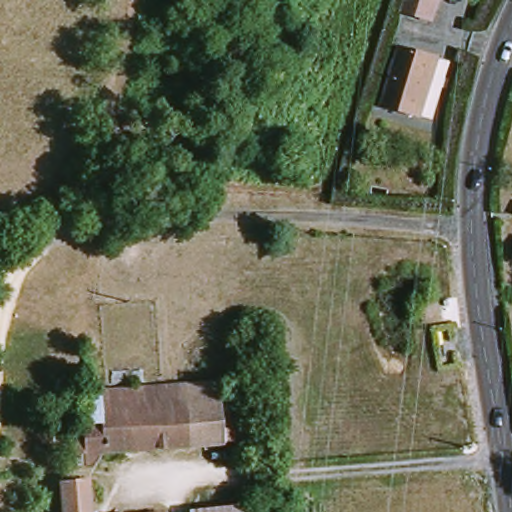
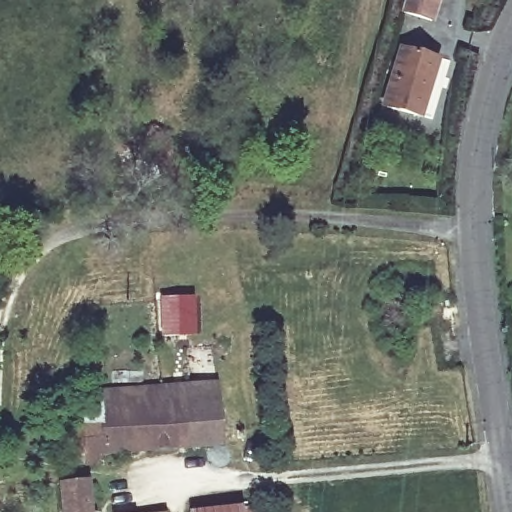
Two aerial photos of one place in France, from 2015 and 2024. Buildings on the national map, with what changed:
unchanged [(403,12),(407,0),(437,0),(431,20),(403,12)]
unchanged [(437,60),(419,117),(383,106),(401,49),(437,60)]
new [(197,294),(198,334),(161,335),(159,295),(197,294)]
unchanged [(220,417),(232,416),(234,443),(187,446),(181,388),(217,385),(220,417)]
unchanged [(187,446),(95,454),(94,454),(95,460),(95,463),(82,465),(74,396),(181,388),(187,446)]
unchanged [(91,512),(64,512),(62,486),(87,483),(91,512)]

